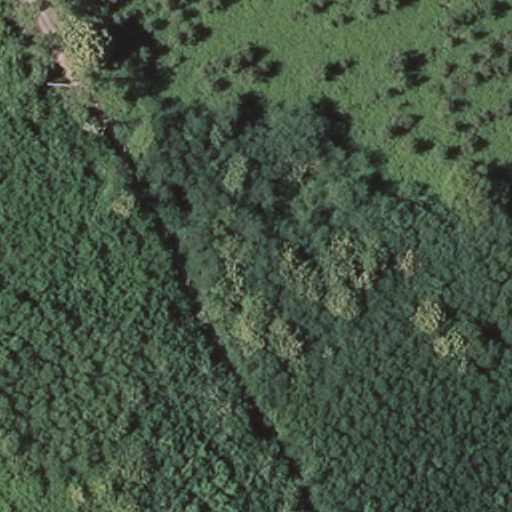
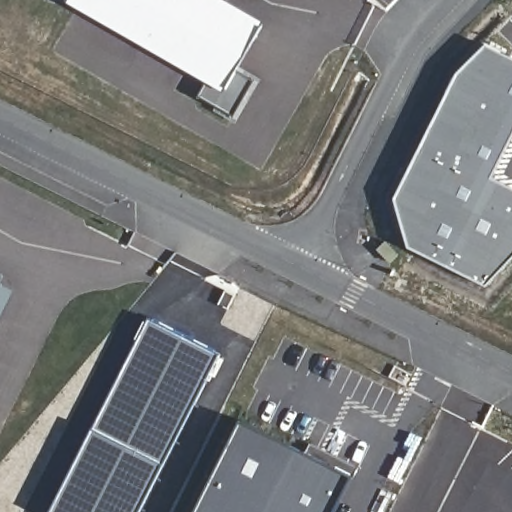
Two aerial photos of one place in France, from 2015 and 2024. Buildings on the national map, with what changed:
new [(240,68),(259,78),(238,115),(201,94),(212,76),(79,0),(224,0),(265,24),(240,68)]
new [(397,198),(471,60),(476,63),(484,46),(512,60),(512,136),(491,179),(512,190),(512,259),(488,286),(410,247),(397,198)]
new [(0,317),(0,287),(13,294),(0,317)]
new [(139,512),(53,512),(150,321),(219,356),(163,465),(139,512)]
new [(240,423),(288,446),(255,512),(196,512),(240,423)]
new [(304,452),(309,444),(358,468),(353,477),(336,512),(255,512),(289,444),(304,452)]

